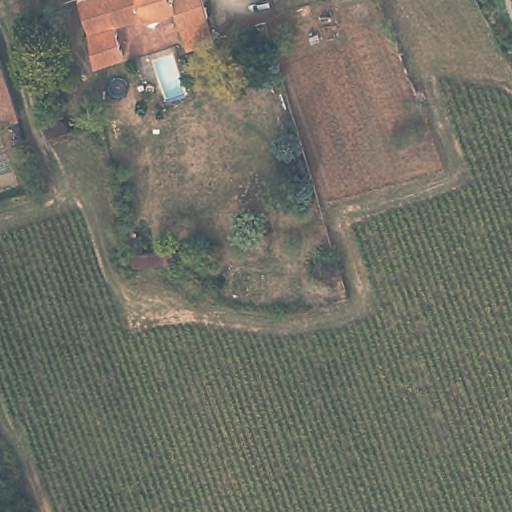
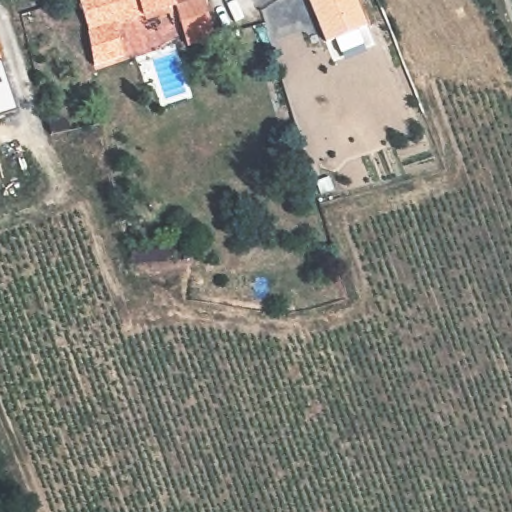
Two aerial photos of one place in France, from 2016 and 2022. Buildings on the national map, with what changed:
unchanged [(80,0),(205,0),(208,10),(182,17),(173,2),(118,18),(128,47),(100,59),(99,55),(89,27),(80,0)]
new [(324,42),(307,0),(355,0),(365,25),(324,42)]
unchanged [(7,113),(0,91),(0,51),(1,54),(18,110),(7,113)]

